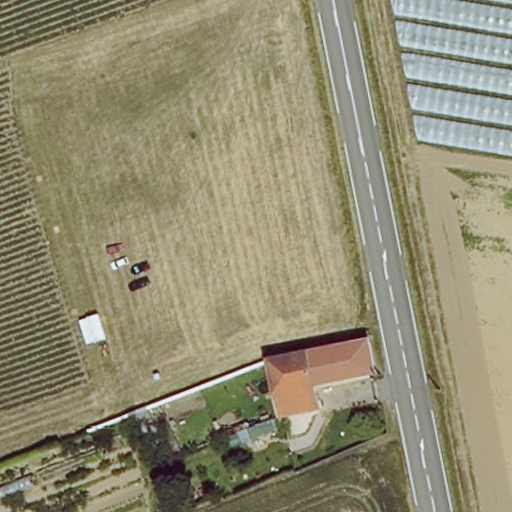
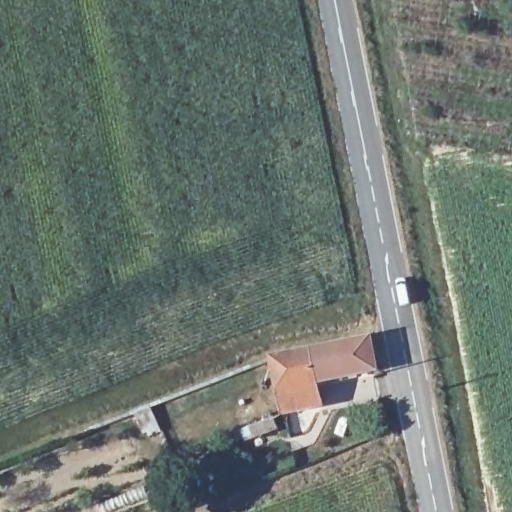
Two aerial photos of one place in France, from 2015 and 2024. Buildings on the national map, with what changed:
demolished [(417,148),(394,0),(512,0),(512,163),(417,148)]
unchanged [(279,413),(272,360),(370,339),(376,373),(317,386),(320,408),(279,413)]

